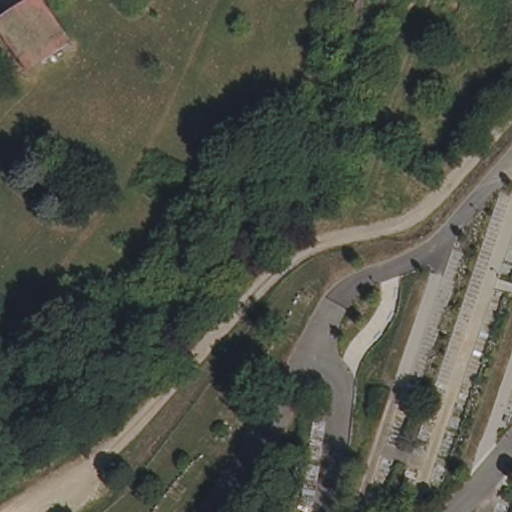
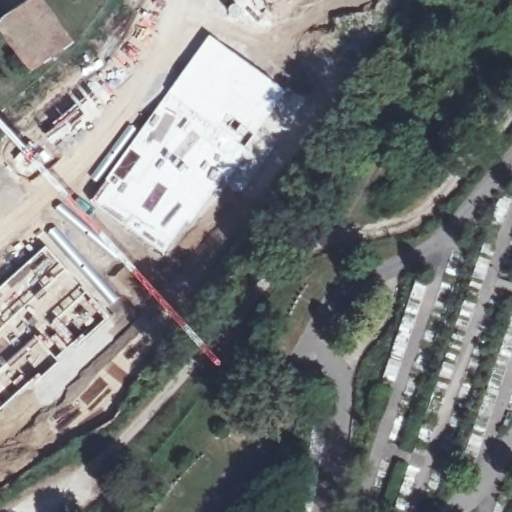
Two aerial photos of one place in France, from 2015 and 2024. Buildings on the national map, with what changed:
unchanged [(32,69),(0,25),(35,0),(42,0),(71,42),(32,69)]
new [(125,144),(153,111),(209,34),(286,91),(253,136),(244,130),(236,141),(218,129),(211,140),(206,137),(188,160),(218,183),(164,253),(90,201),(125,144)]
new [(111,314),(94,331),(0,408),(0,284),(46,244),(111,314)]

